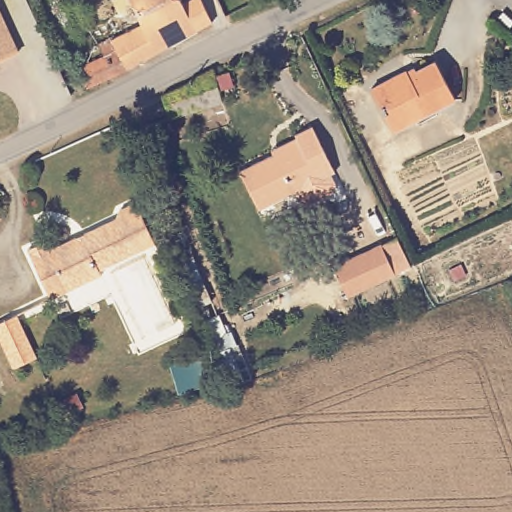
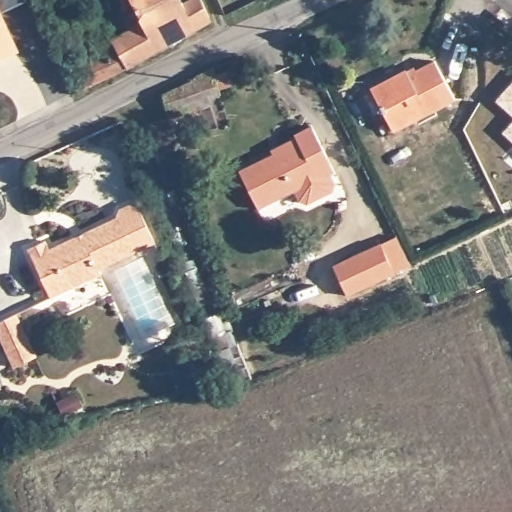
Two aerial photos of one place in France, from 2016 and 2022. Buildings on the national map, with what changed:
unchanged [(146,0),(159,15),(185,1),(189,0),(203,0),(215,20),(178,42),(141,62),(131,67),(130,65),(89,87),(79,66),(98,57),(95,50),(117,39),(117,40),(148,25),(138,4),(146,0)]
unchanged [(185,0),(185,1),(159,15),(146,0),(138,4),(136,0),(185,0)]
unchanged [(16,51),(0,59),(0,18),(16,51)]
unchanged [(370,89),(404,71),(408,74),(435,60),(455,99),(393,130),(370,89)]
unchanged [(220,102),(169,117),(162,95),(212,69),(214,76),(220,102)]
new [(512,81),(512,116),(495,100),(512,81)]
new [(512,123),(512,141),(503,133),(512,123)]
unchanged [(330,192),(305,204),(297,201),(292,191),(256,209),(238,170),(297,141),(293,134),(310,125),(334,171),(328,174),(333,184),(330,192)]
unchanged [(45,251),(112,220),(112,219),(113,212),(118,207),(124,205),(134,206),(151,243),(94,271),(96,276),(44,301),(20,252),(38,243),(45,251)]
unchanged [(393,273),(346,295),(332,265),(380,244),(393,273)]
unchanged [(16,316),(36,358),(14,369),(0,341),(0,324),(16,316)]

